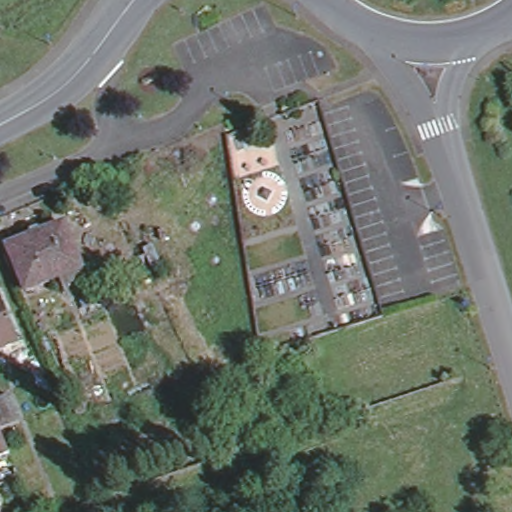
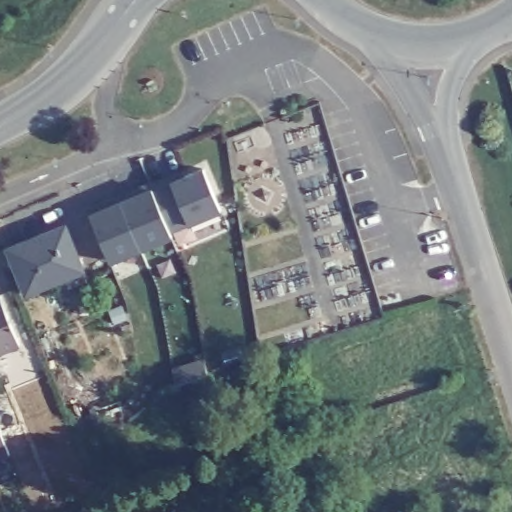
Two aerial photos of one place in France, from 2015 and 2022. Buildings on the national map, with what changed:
new [(152,189),(152,190),(172,182),(185,176),(187,181),(205,174),(222,215),(171,236),(173,240),(112,267),(92,220),(90,215),(105,209),(121,202),(135,195),(152,189)]
unchanged [(65,230),(84,274),(27,297),(9,253),(65,230)]
unchanged [(0,356),(0,305),(17,348),(0,356)]
unchanged [(19,424),(0,431),(0,401),(9,398),(19,424)]
unchanged [(0,436),(7,455),(0,458),(0,436)]

